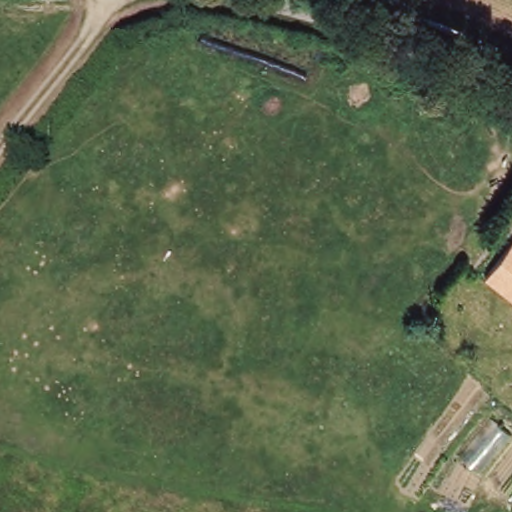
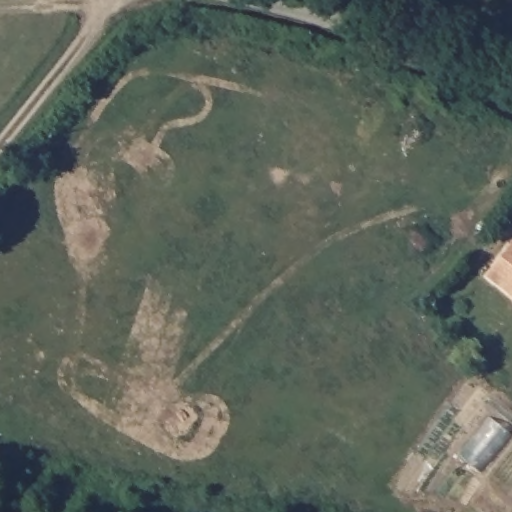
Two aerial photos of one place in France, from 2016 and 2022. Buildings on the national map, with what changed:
unchanged [(489,278),(512,246),(512,294),(489,278)]

